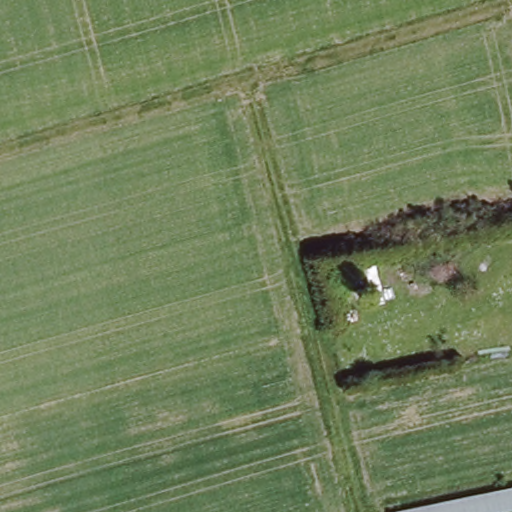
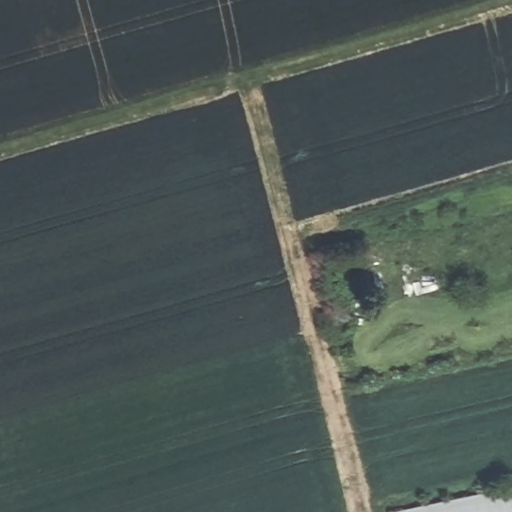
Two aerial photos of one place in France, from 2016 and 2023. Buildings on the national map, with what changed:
unchanged [(390,510),(512,485),(512,512),(390,512),(390,510)]

